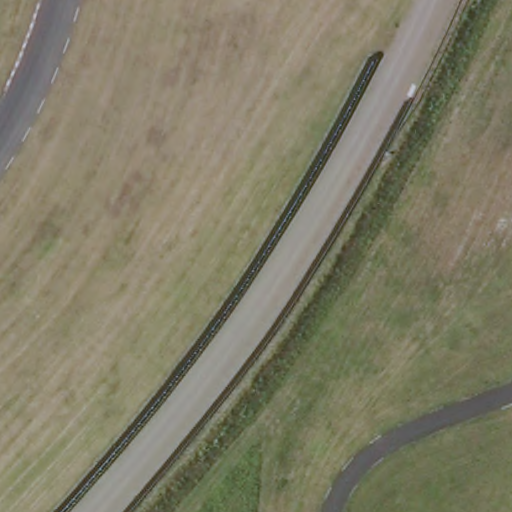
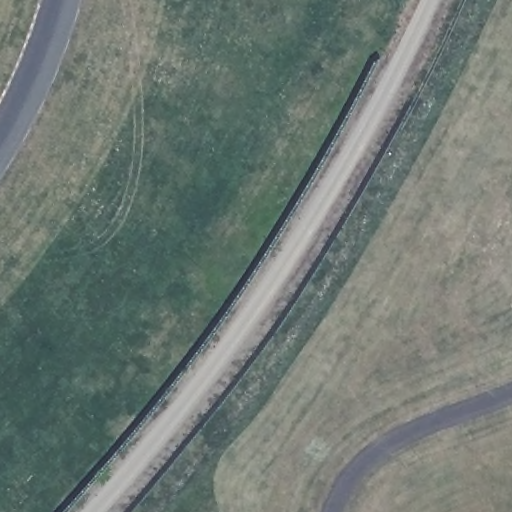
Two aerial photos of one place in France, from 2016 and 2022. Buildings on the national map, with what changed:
[]

